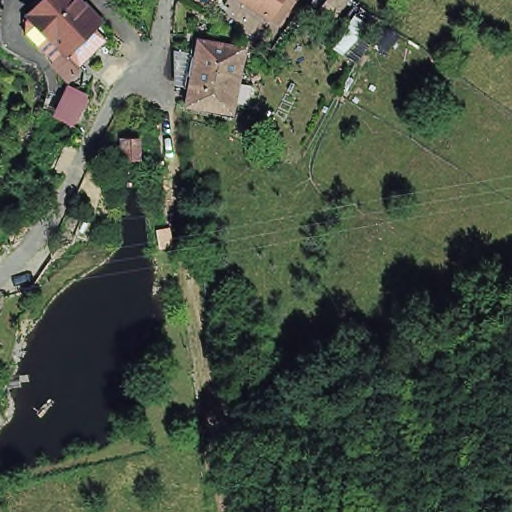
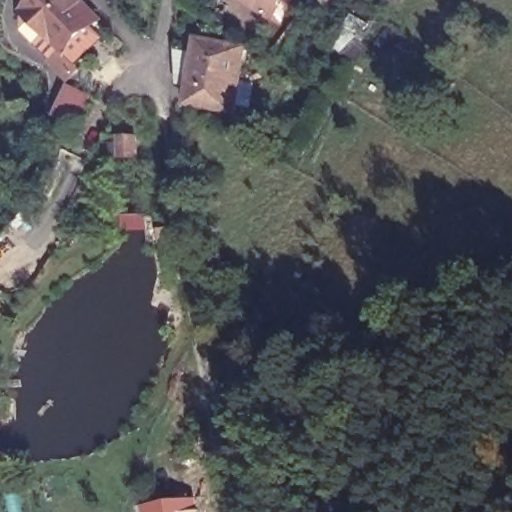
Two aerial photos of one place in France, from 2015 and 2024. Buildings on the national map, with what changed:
unchanged [(42,5),(47,0),(102,0),(115,13),(81,46),(42,5)]
unchanged [(245,0),(286,0),(273,19),(245,0)]
unchanged [(81,46),(93,58),(80,70),(37,24),(36,10),(42,5),(81,46)]
unchanged [(233,116),(188,106),(200,44),(244,53),(233,116)]
unchanged [(122,163),(122,161),(122,140),(140,140),(140,163),(122,163)]
new [(202,512),(143,512),(142,504),(200,496),(202,512)]

